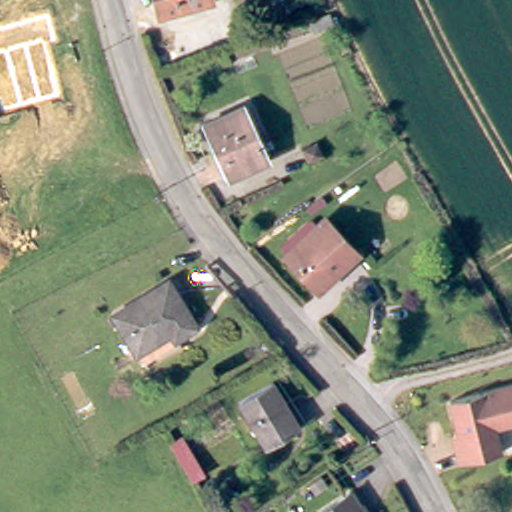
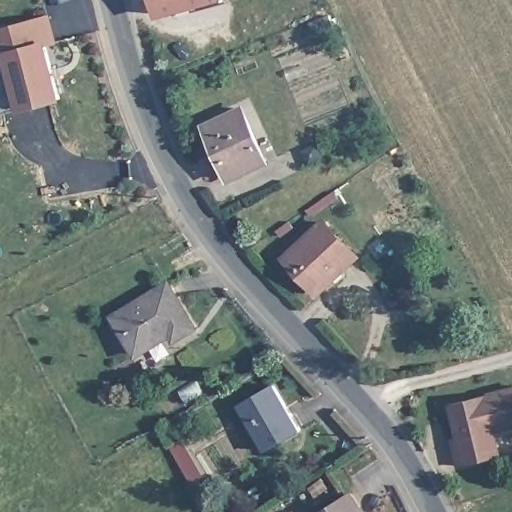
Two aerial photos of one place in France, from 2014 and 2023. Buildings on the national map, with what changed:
unchanged [(157,8),(155,0),(197,0),(183,3),(185,9),(173,12),(171,6),(157,8)]
unchanged [(327,16),(306,24),(303,15),(325,7),(327,16)]
new [(61,101),(19,113),(5,59),(0,59),(0,29),(48,15),(57,44),(48,46),(61,101)]
unchanged [(260,158),(223,173),(202,120),(240,105),(260,158)]
unchanged [(316,160),(302,166),(297,151),(311,146),(316,160)]
unchanged [(318,221),(350,255),(314,290),(282,256),(318,221)]
unchanged [(186,323),(167,335),(163,329),(129,351),(105,314),(158,279),(186,323)]
unchanged [(295,426),(260,448),(231,404),(265,382),(295,426)]
unchanged [(512,427),(496,431),(501,457),(456,467),(448,440),(452,438),(443,405),(512,387),(512,427)]
unchanged [(208,487),(200,493),(176,457),(185,451),(208,487)]
unchanged [(343,492),(352,506),(357,512),(314,512),(343,492)]

